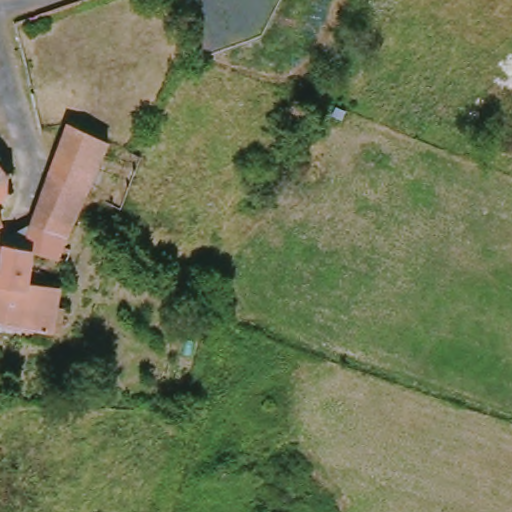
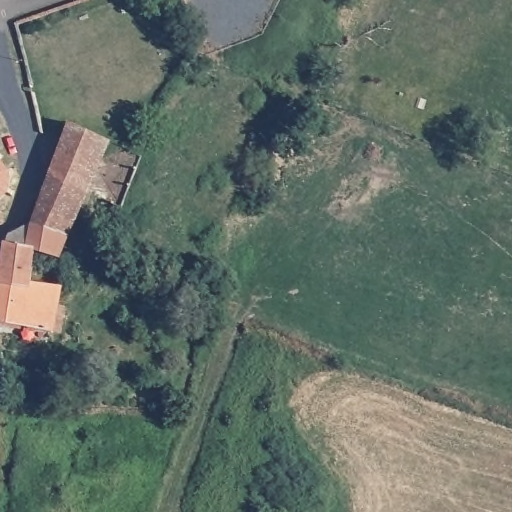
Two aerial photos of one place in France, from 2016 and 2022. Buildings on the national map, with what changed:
unchanged [(3,242),(10,234),(28,235),(30,224),(35,213),(48,172),(59,142),(66,121),(106,140),(97,161),(83,191),(74,212),(71,219),(75,222),(71,230),(67,228),(60,241),(68,245),(66,258),(57,255),(32,248),(3,242)]
unchanged [(2,156),(5,159),(2,166),(10,174),(16,173),(18,176),(11,179),(11,192),(16,195),(15,199),(8,195),(0,204),(0,158),(2,156)]
unchanged [(5,226),(0,228),(0,209),(5,226)]
unchanged [(3,242),(32,248),(28,279),(42,281),(58,284),(55,304),(62,306),(57,330),(48,330),(37,328),(20,325),(0,321),(0,261),(3,242)]

